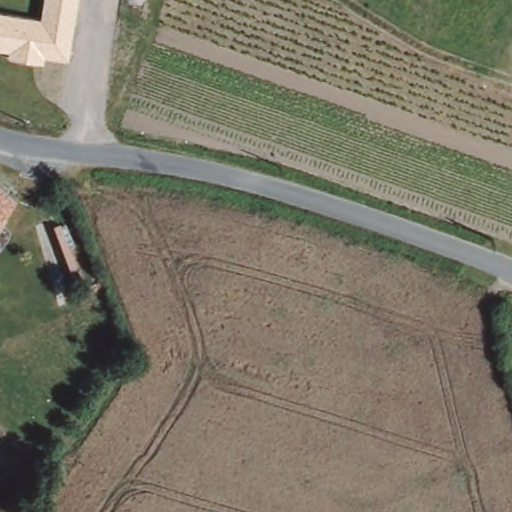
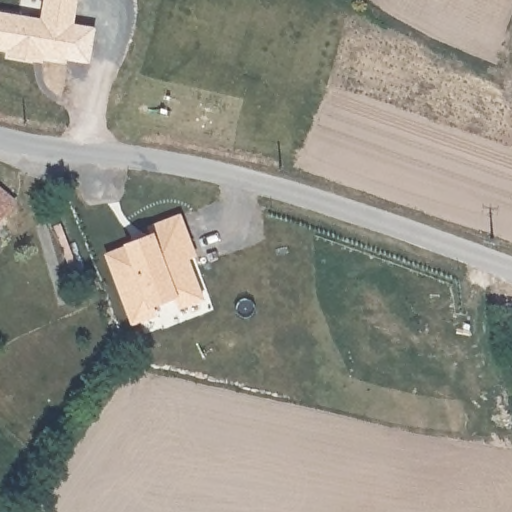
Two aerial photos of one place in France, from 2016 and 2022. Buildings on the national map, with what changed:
unchanged [(42,55),(41,61),(7,55),(8,49),(0,48),(0,10),(40,17),(42,0),(78,0),(70,60),(42,55)]
unchanged [(23,204),(7,221),(0,229),(0,184),(23,204)]
new [(107,254),(128,244),(152,235),(150,227),(179,217),(195,252),(187,256),(202,298),(181,306),(175,293),(150,304),(154,315),(133,322),(107,254)]

